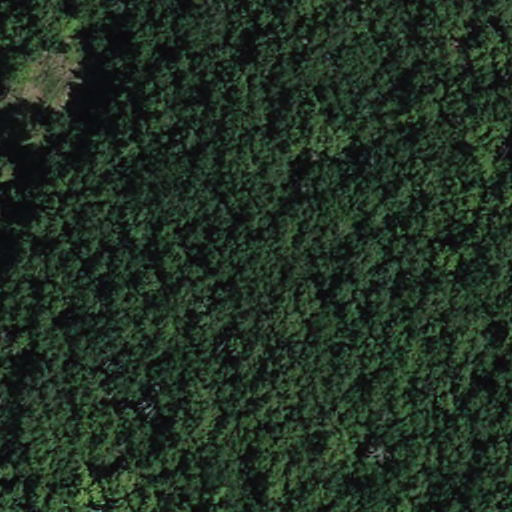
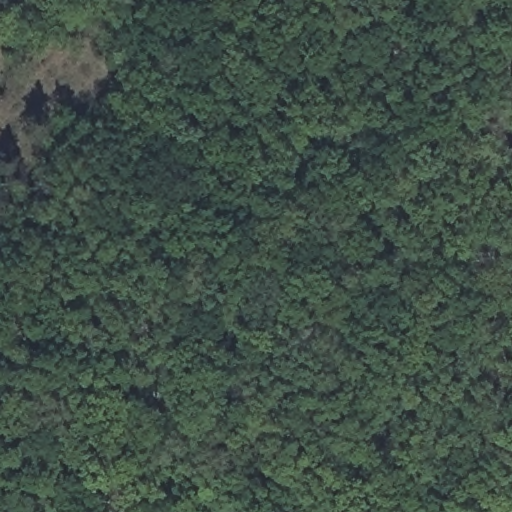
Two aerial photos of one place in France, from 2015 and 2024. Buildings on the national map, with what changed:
[]

